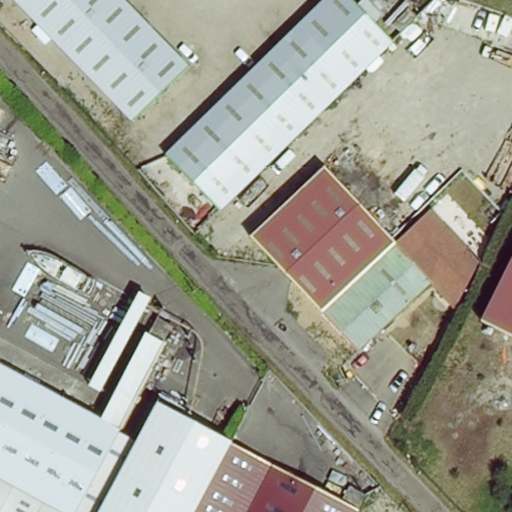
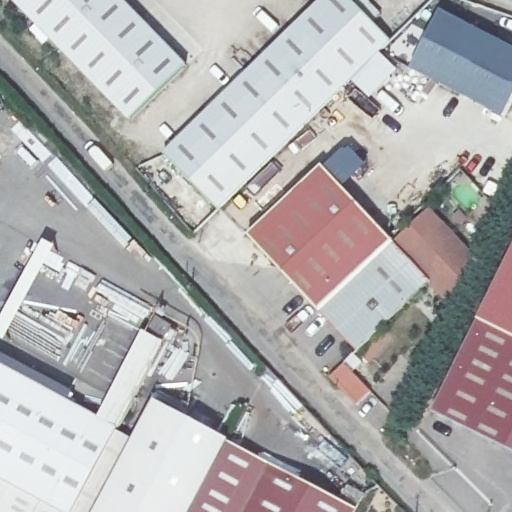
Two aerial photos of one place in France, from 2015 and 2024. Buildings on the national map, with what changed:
unchanged [(126,0),(186,62),(124,118),(10,0),(126,0)]
unchanged [(354,0),(392,36),(219,205),(163,150),(318,0),(354,0)]
new [(439,12),(512,49),(512,103),(504,118),(410,70),(439,12)]
unchanged [(317,311),(247,229),(319,162),(390,240),(317,311)]
unchanged [(406,253),(445,219),(480,259),(452,303),(431,278),(355,353),(317,311),(390,240),(406,253)]
unchanged [(512,240),(512,336),(473,316),(512,240)]
unchanged [(108,415),(167,307),(188,319),(128,431),(85,512),(0,512),(0,357),(108,415)]
new [(474,316),(512,336),(512,453),(427,413),(474,316)]
unchanged [(142,438),(160,405),(234,445),(198,512),(85,512),(128,431),(142,438)]
unchanged [(324,496),(334,479),(364,496),(356,512),(249,512),(273,467),(324,496)]

